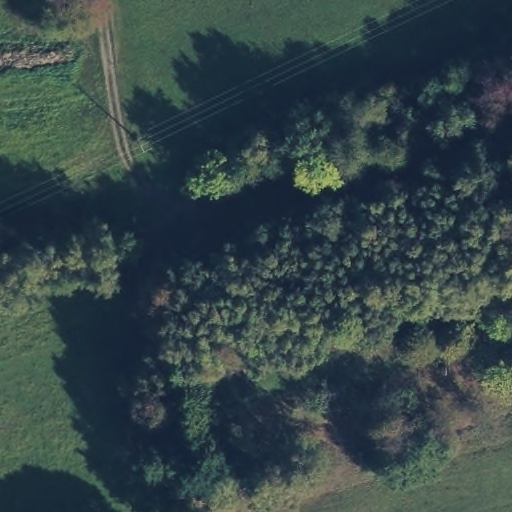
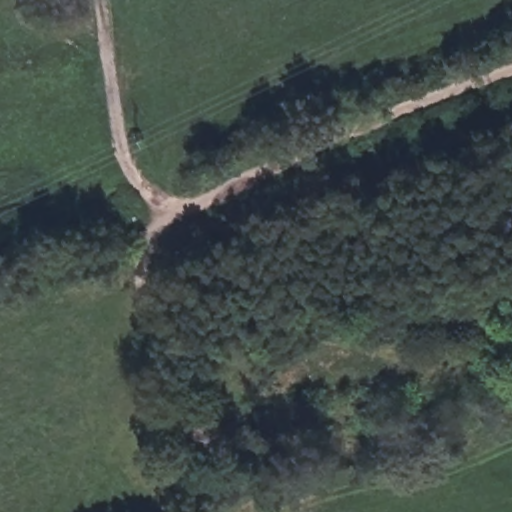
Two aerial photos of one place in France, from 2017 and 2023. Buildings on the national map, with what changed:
[]

